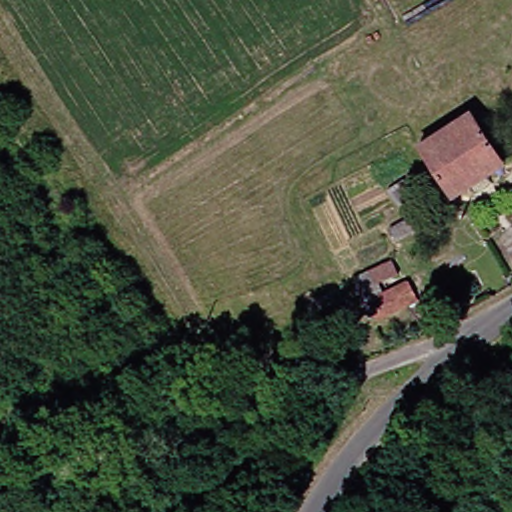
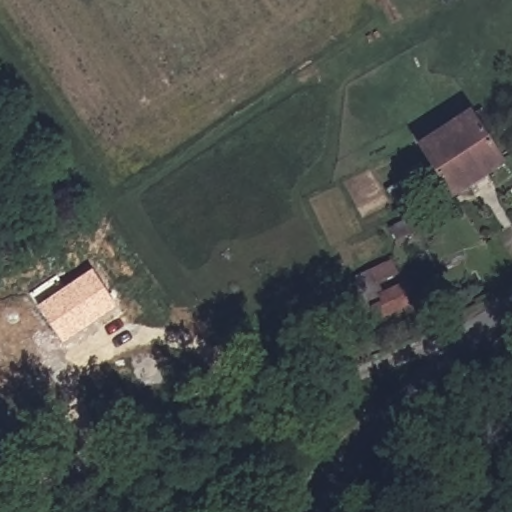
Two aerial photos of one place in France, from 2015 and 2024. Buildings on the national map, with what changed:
unchanged [(452,194),(419,144),(470,111),(472,115),(480,110),(489,124),(482,129),(503,162),(452,194)]
unchanged [(412,191),(397,203),(387,190),(402,179),(412,191)]
unchanged [(413,231),(397,239),(390,227),(407,218),(413,231)]
unchanged [(417,300),(390,313),(376,320),(355,275),(392,259),(398,273),(377,282),(381,293),(407,280),(417,300)]
new [(64,342),(39,305),(92,269),(117,305),(64,342)]

